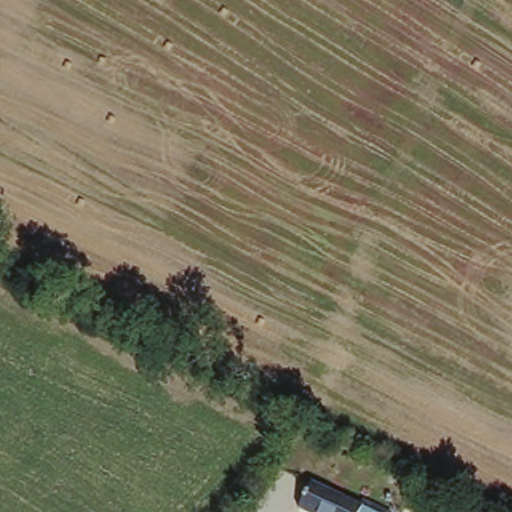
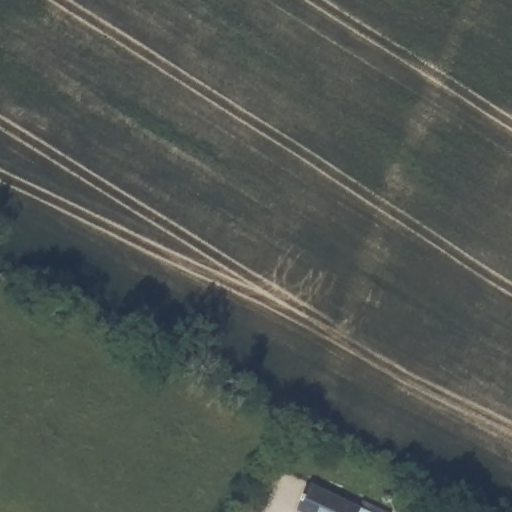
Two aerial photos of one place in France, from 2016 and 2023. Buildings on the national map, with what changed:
unchanged [(299,509),(313,482),(365,507),(377,512),(305,512),(299,509)]

